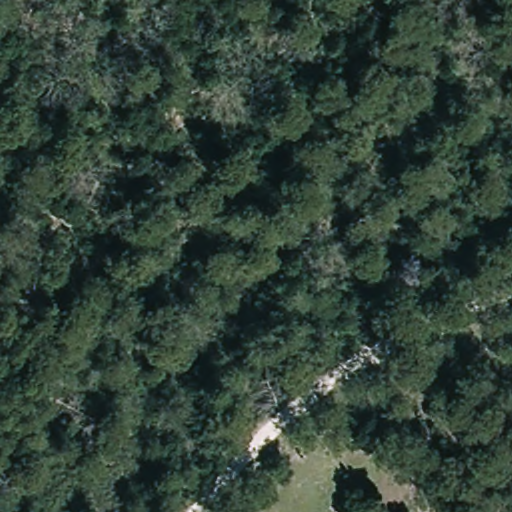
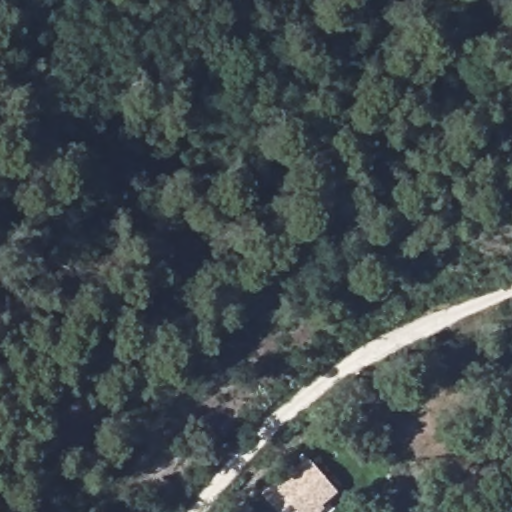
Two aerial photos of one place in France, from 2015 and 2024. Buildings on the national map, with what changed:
new [(319,512),(277,512),(264,497),(310,458),(338,491),(323,504),(325,507),(319,512)]

